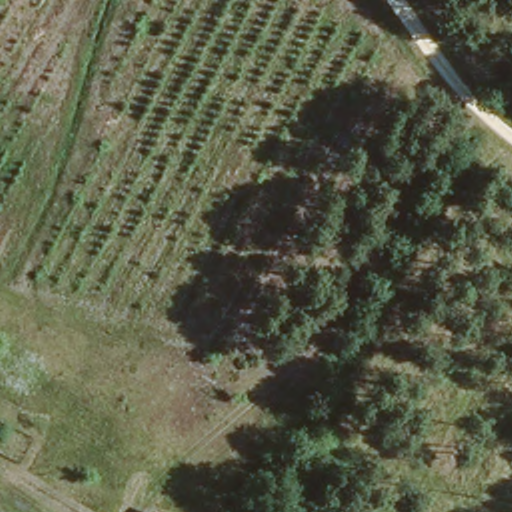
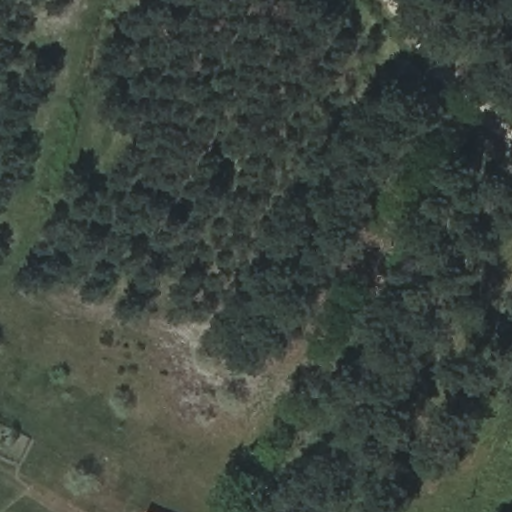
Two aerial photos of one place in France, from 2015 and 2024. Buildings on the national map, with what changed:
unchanged [(148,507),(160,512),(146,512),(148,507)]

